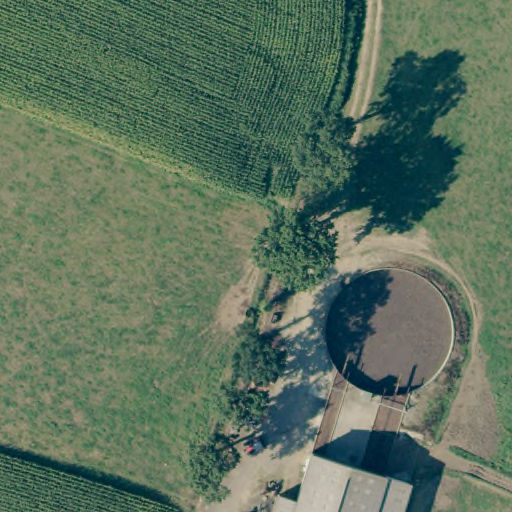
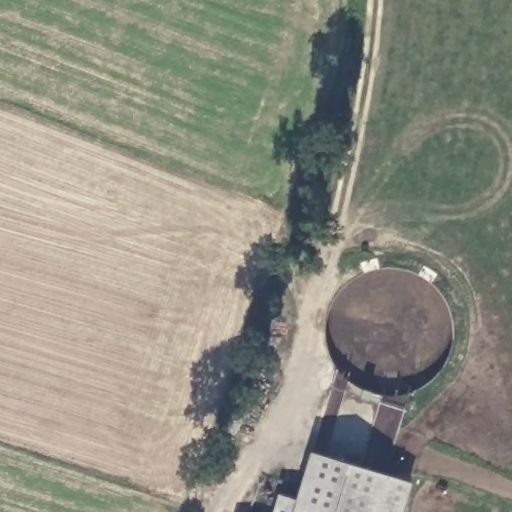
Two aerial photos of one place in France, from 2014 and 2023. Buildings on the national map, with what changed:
unchanged [(401,512),(275,512),(280,492),(299,497),(313,450),(410,478),(401,512)]

